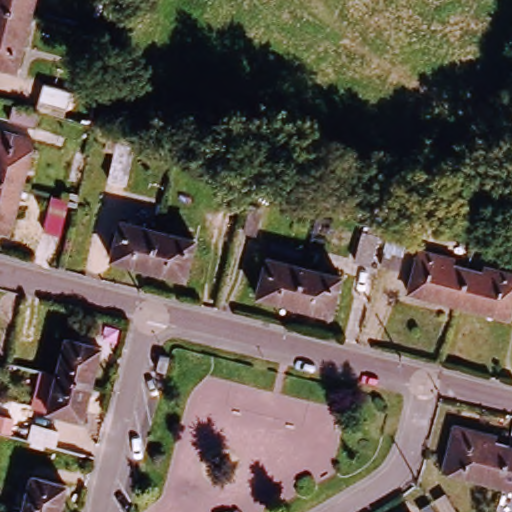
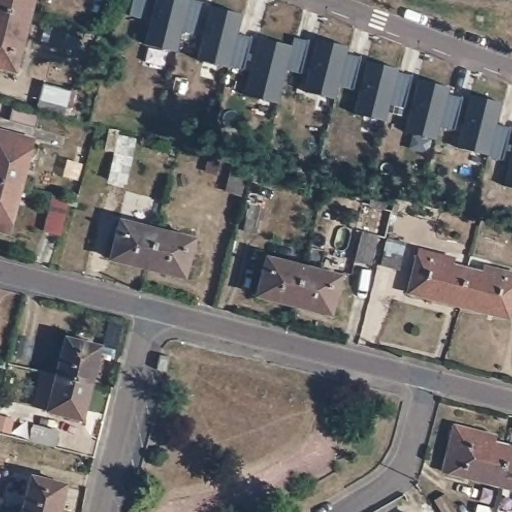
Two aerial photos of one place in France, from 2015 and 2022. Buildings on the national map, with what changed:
unchanged [(0,0),(37,0),(33,16),(0,7),(0,0)]
new [(149,0),(144,19),(128,16),(132,0),(149,0)]
new [(195,35),(180,31),(175,51),(145,43),(156,0),(192,0),(204,3),(195,35)]
new [(243,70),(228,66),(228,67),(197,59),(210,6),(241,14),(236,34),(251,38),(243,70)]
unchanged [(0,65),(0,7),(33,16),(18,71),(0,65)]
new [(291,46),(293,38),(308,41),(300,74),(285,70),(277,104),(244,95),(258,38),(291,46)]
new [(353,90),(338,86),(335,100),(303,91),(316,39),(347,47),(346,54),(361,58),(353,90)]
new [(398,69),(397,72),(412,76),(404,108),(389,104),(385,121),(354,114),(367,61),(398,69)]
unchanged [(50,75),(82,83),(74,113),(43,104),(50,75)]
new [(454,130),(439,126),(435,140),(405,132),(418,80),(449,88),(447,95),(462,99),(454,130)]
new [(503,160),(487,156),(457,148),(470,95),(501,103),(495,125),(511,129),(503,160)]
unchanged [(15,106),(44,114),(40,130),(10,122),(15,106)]
unchanged [(37,145),(25,190),(0,183),(0,150),(4,136),(37,145)]
unchanged [(111,143),(130,147),(123,178),(104,174),(111,143)]
unchanged [(67,149),(78,151),(73,180),(62,178),(67,149)]
new [(503,186),(512,151),(512,188),(503,186)]
unchanged [(13,237),(0,234),(0,183),(25,190),(13,237)]
unchanged [(68,203),(60,237),(45,235),(51,198),(68,203)]
unchanged [(245,198),(262,202),(255,233),(238,229),(245,198)]
unchanged [(146,267),(110,258),(120,219),(156,228),(146,267)]
unchanged [(194,238),(183,277),(146,267),(156,228),(194,238)]
unchanged [(362,232),(380,236),(372,266),(353,262),(362,232)]
unchanged [(400,242),(392,272),(377,268),(385,238),(400,242)]
unchanged [(457,308),(407,296),(419,253),(452,262),(451,268),(467,272),(457,308)]
unchanged [(254,299),(263,260),(305,271),(295,310),(254,299)]
unchanged [(480,275),(482,270),(512,278),(512,307),(508,321),(457,308),(467,272),(480,275)]
unchanged [(305,271),(341,280),(331,319),(295,310),(305,271)]
unchanged [(67,337),(102,346),(92,383),(57,374),(67,337)]
unchanged [(170,356),(166,372),(156,369),(160,354),(170,356)]
unchanged [(92,383),(83,420),(48,410),(57,374),(92,383)]
unchanged [(443,472),(455,426),(495,436),(493,442),(507,445),(497,486),(443,472)]
unchanged [(507,445),(512,446),(512,489),(497,486),(507,445)]
unchanged [(8,466),(0,464),(0,450),(12,454),(8,466)]
unchanged [(31,475),(67,484),(60,512),(31,512),(22,510),(31,475)]
unchanged [(441,495),(451,512),(437,512),(431,501),(441,495)]
unchanged [(432,512),(421,512),(418,508),(427,503),(432,512)]
unchanged [(31,512),(22,512),(22,510),(31,512)]

